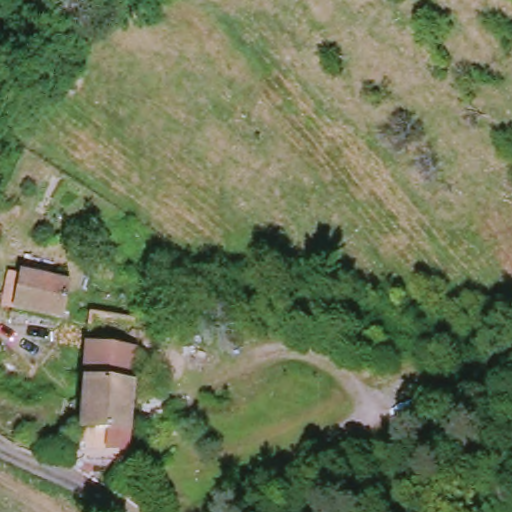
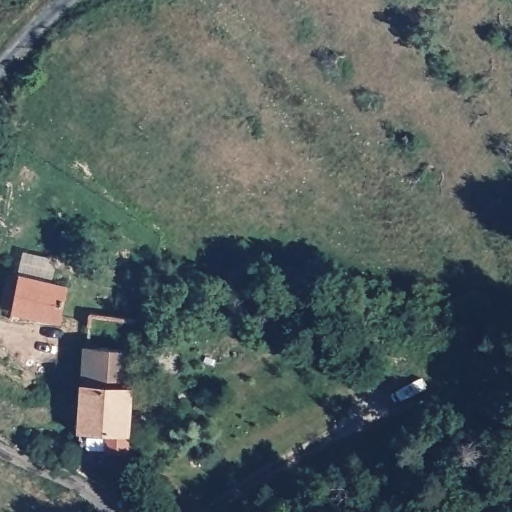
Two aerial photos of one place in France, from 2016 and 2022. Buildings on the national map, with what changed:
unchanged [(4,231),(0,242),(0,230),(4,231)]
unchanged [(9,296),(15,275),(24,277),(24,276),(76,284),(69,325),(18,314),(19,309),(6,306),(9,296)]
unchanged [(138,348),(136,384),(134,433),(133,451),(107,451),(107,438),(96,439),(95,430),(80,434),(82,380),(87,344),(138,348)]
unchanged [(31,436),(45,442),(40,454),(24,448),(31,436)]

